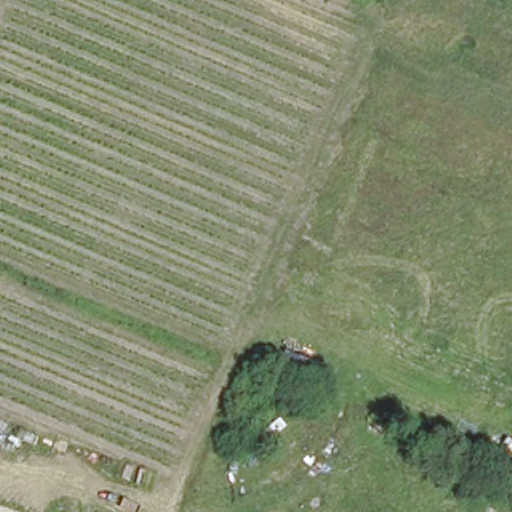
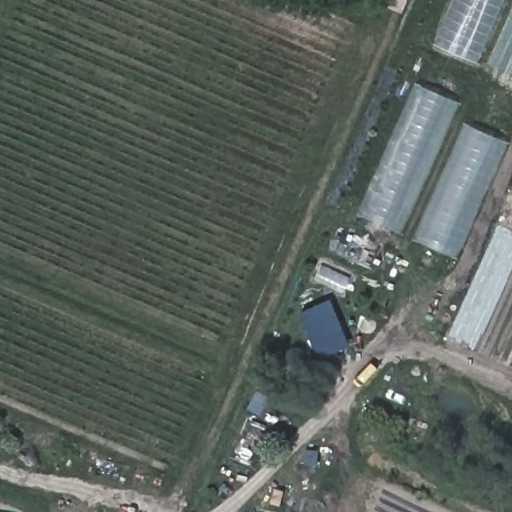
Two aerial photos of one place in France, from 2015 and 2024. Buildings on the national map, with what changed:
new [(453,0),(504,0),(478,62),(434,45),(453,0)]
new [(415,81),(459,100),(402,231),(358,213),(415,81)]
new [(457,258),(412,238),(464,121),(509,141),(457,258)]
new [(349,345),(318,357),(299,311),(330,299),(349,345)]

